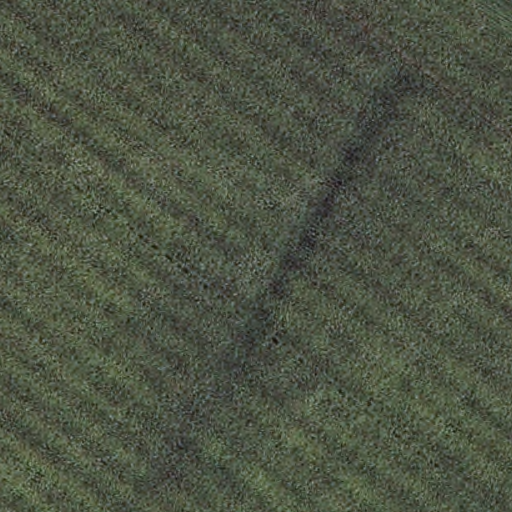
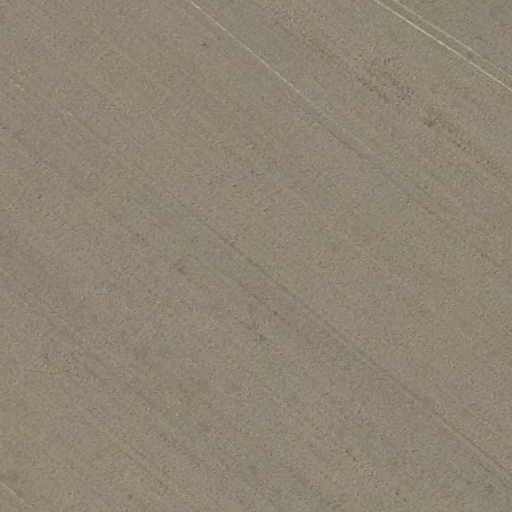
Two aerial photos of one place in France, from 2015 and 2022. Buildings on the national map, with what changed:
[]

